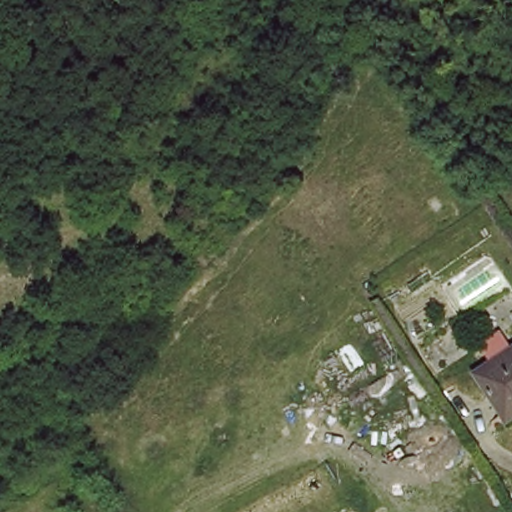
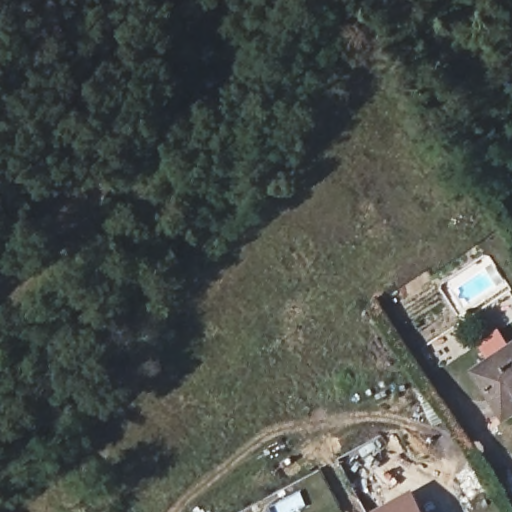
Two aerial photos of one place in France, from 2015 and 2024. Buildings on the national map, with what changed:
unchanged [(507,415),(480,374),(512,353),(512,422),(507,415)]
new [(424,512),(375,512),(414,492),(424,512)]

